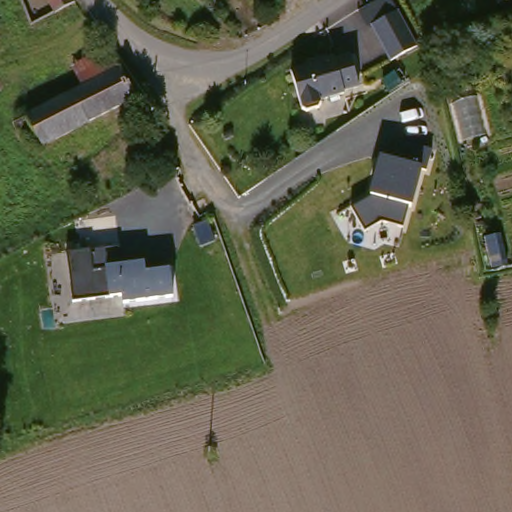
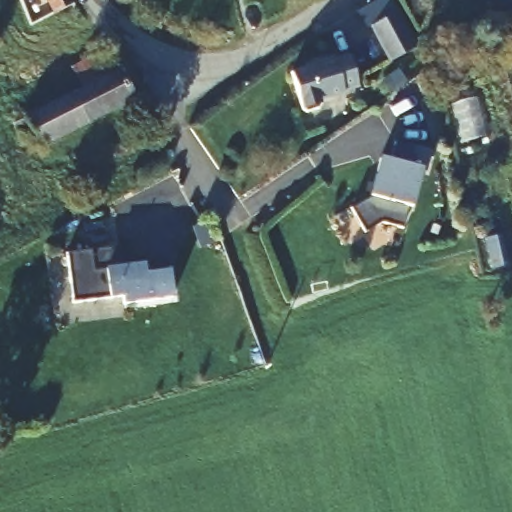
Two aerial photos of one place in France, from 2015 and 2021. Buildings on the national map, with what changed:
unchanged [(48,20),(37,0),(67,0),(73,10),(48,20)]
unchanged [(388,21),(409,54),(384,71),(363,37),(388,21)]
unchanged [(117,71),(78,90),(68,68),(105,50),(117,71)]
unchanged [(317,62),(316,60),(333,55),(334,57),(349,54),(358,85),(343,89),(343,92),(319,98),(320,102),(318,106),(305,110),(301,107),(291,69),(317,62)]
unchanged [(117,71),(134,103),(88,127),(86,126),(38,149),(33,138),(19,142),(8,122),(78,90),(117,71)]
unchanged [(427,172),(419,172),(409,206),(404,227),(378,222),(364,232),(351,206),(371,195),(378,155),(409,162),(413,147),(431,152),(427,172)]
unchanged [(491,234),(498,263),(483,267),(476,238),(491,234)]
unchanged [(124,303),(123,297),(73,303),(66,257),(105,250),(108,268),(144,265),(146,273),(170,270),(173,296),(124,303)]

